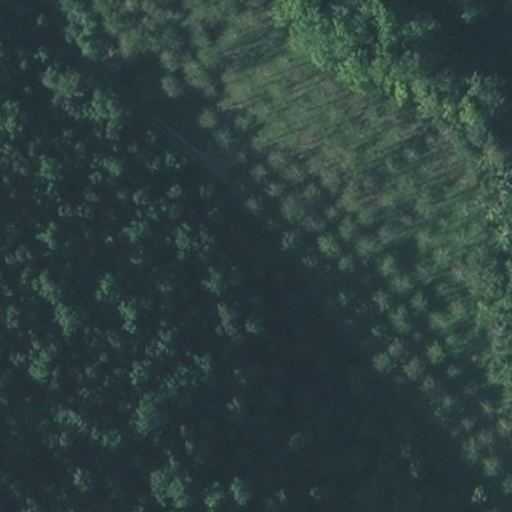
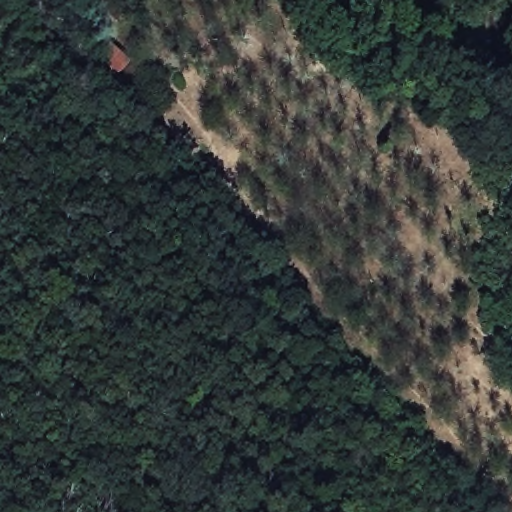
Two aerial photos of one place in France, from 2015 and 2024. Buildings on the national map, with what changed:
unchanged [(95,53),(108,35),(135,58),(120,74),(95,53)]

